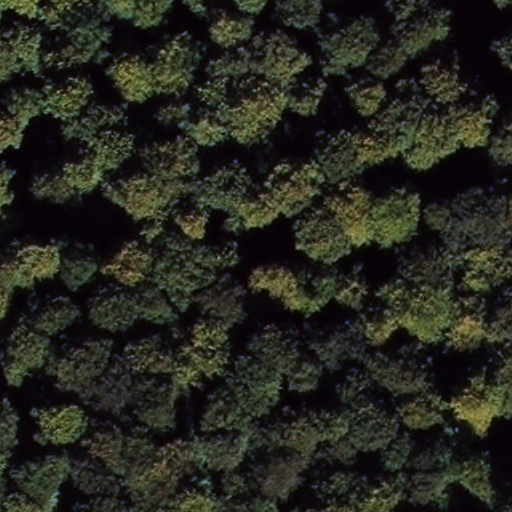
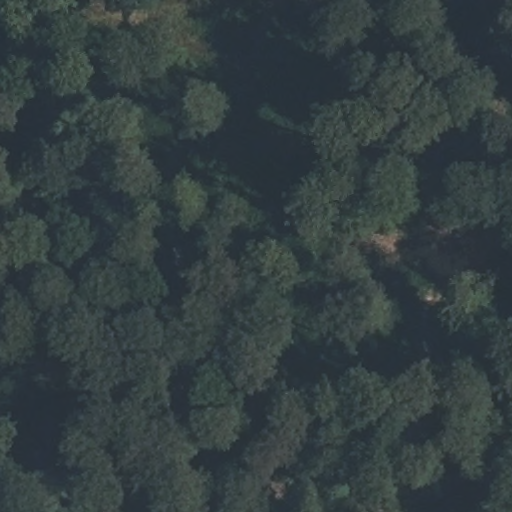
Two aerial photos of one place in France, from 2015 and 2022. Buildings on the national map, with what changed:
[]

